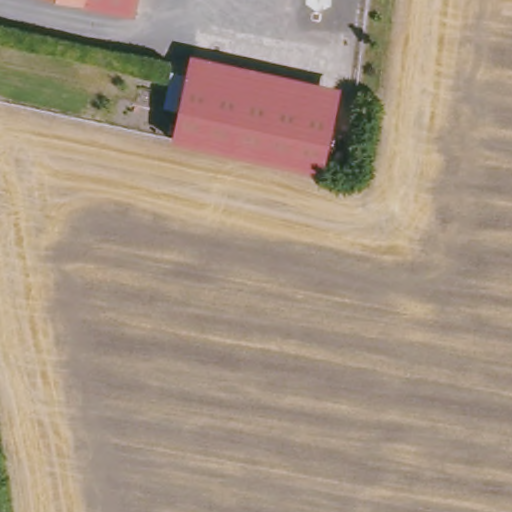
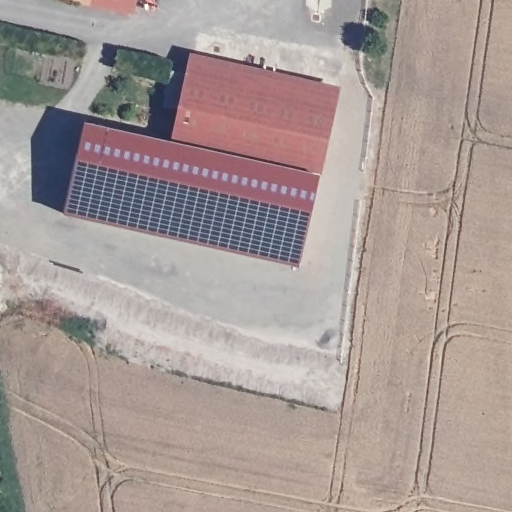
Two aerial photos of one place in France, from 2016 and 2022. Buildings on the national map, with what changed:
unchanged [(105,0),(136,0),(135,6),(105,0)]
unchanged [(192,49),(340,82),(335,103),(187,70),(192,49)]
unchanged [(335,103),(320,169),(172,136),(187,70),(335,103)]
new [(85,121),(319,173),(298,263),(64,213),(85,121)]

